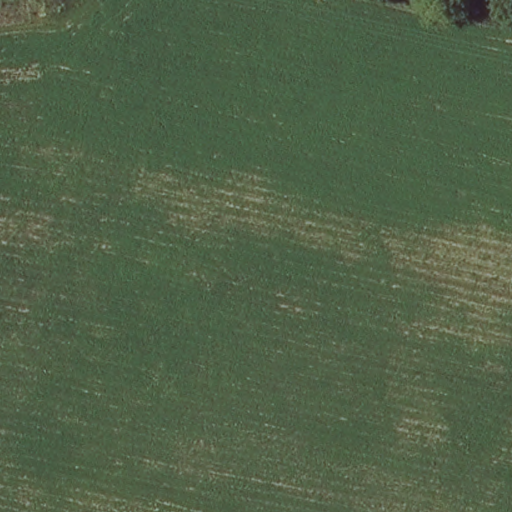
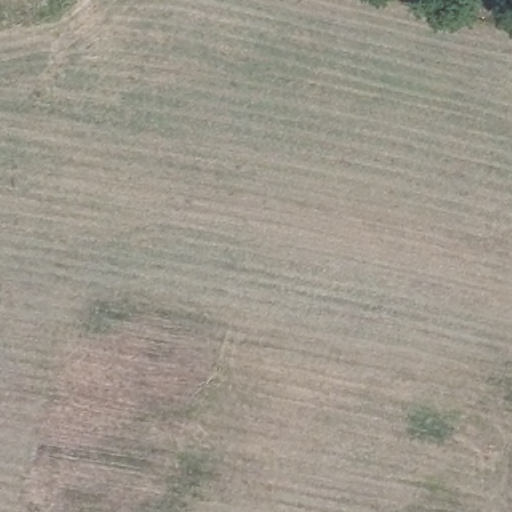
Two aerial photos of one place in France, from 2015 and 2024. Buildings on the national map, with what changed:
[]

